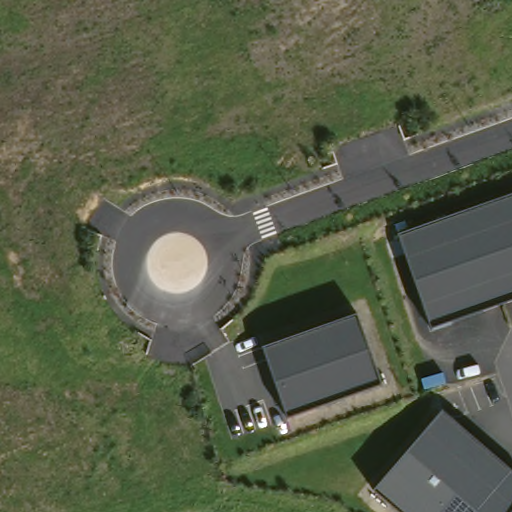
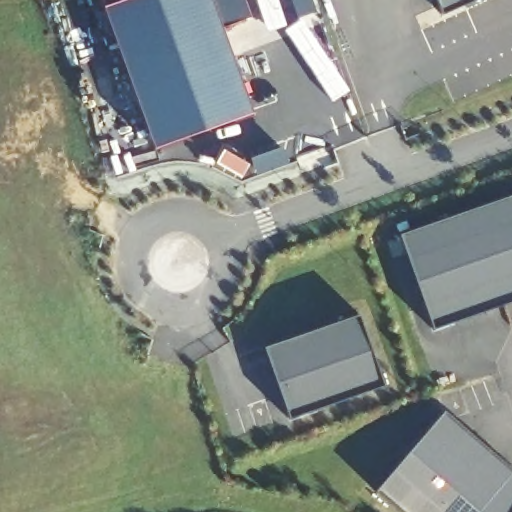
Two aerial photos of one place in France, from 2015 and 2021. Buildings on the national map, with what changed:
new [(127,0),(215,0),(225,25),(256,113),(157,148),(106,7),(109,6),(127,0)]
new [(107,0),(127,0),(109,6),(107,0)]
new [(225,25),(215,0),(247,0),(253,15),(225,25)]
new [(435,0),(472,0),(441,14),(435,0)]
unchanged [(512,199),(512,297),(432,324),(398,237),(512,199)]
unchanged [(359,314),(383,384),(291,418),(265,347),(359,314)]
unchanged [(445,413),(512,469),(512,512),(406,512),(380,489),(445,413)]

